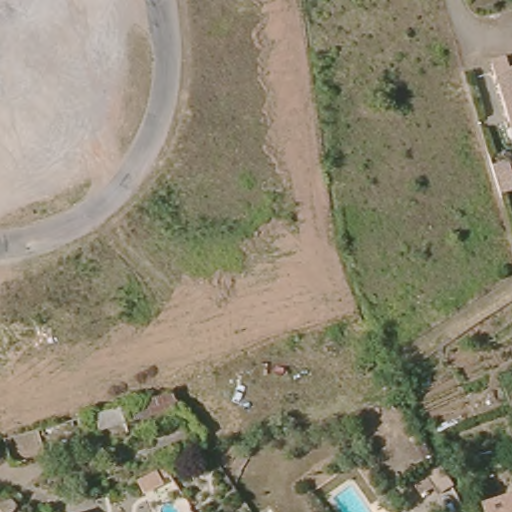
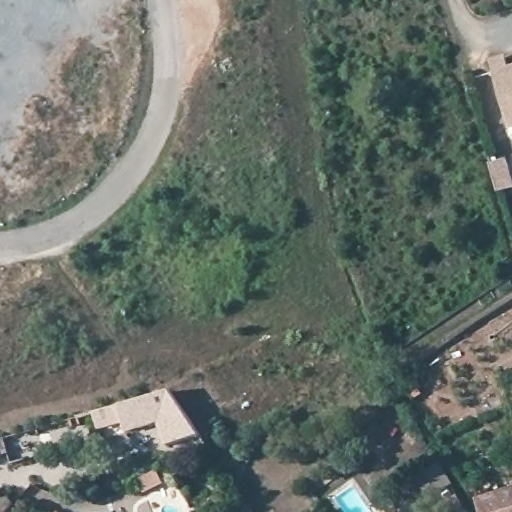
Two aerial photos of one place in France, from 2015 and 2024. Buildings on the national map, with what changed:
unchanged [(495,72),(492,62),(508,57),(511,67),(512,67),(512,129),(510,122),(495,72)]
new [(129,433),(125,425),(99,431),(92,415),(170,390),(200,438),(167,445),(159,425),(129,433)]
new [(400,397),(411,415),(396,423),(390,413),(380,420),(371,405),(383,402),(400,397)]
unchanged [(512,485),(512,512),(481,512),(475,496),(512,485)]
unchanged [(6,495),(12,505),(6,512),(0,512),(0,497),(6,495)]

